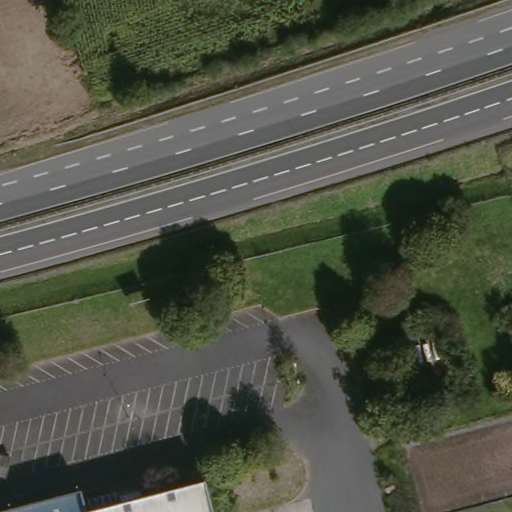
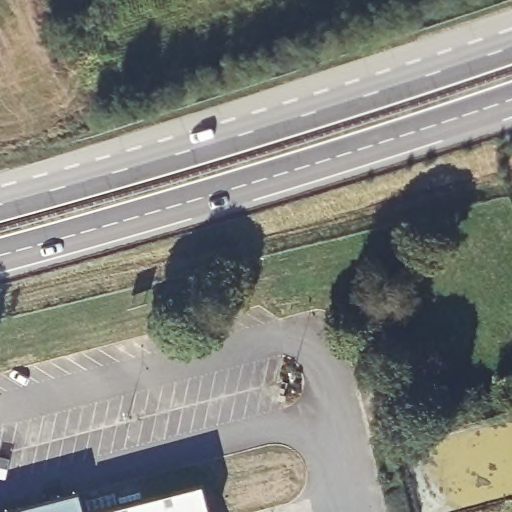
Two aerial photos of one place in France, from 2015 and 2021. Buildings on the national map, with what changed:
unchanged [(198,481),(206,512),(84,512),(198,481)]
unchanged [(82,512),(0,512),(0,509),(75,489),(82,512)]

